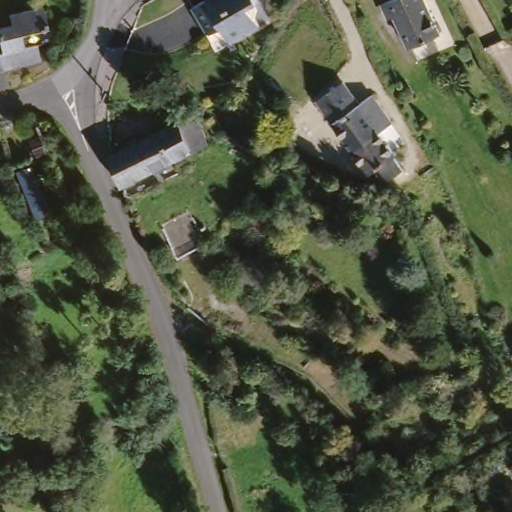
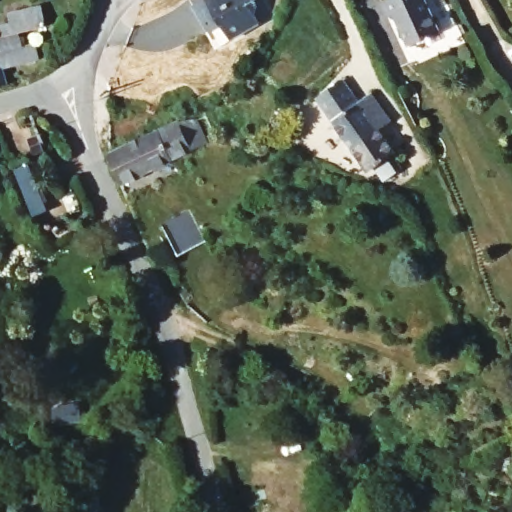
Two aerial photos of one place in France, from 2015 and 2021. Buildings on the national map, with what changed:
unchanged [(0,58),(0,42),(1,41),(0,35),(0,14),(10,11),(7,0),(10,0),(43,0),(46,15),(36,17),(42,32),(29,35),(33,50),(0,58)]
unchanged [(215,49),(190,5),(200,0),(259,0),(246,7),(256,25),(215,49)]
unchanged [(413,46),(398,15),(393,17),(385,2),(390,0),(428,0),(443,32),(413,46)]
unchanged [(0,86),(0,76),(2,85),(0,86)]
unchanged [(347,80),(358,103),(371,96),(385,122),(377,126),(392,154),(364,169),(336,116),(331,119),(318,95),(347,80)]
unchanged [(175,116),(195,119),(205,137),(120,178),(106,147),(175,116)]
unchanged [(33,165),(50,207),(35,215),(15,172),(33,165)]
unchanged [(181,250),(169,219),(197,209),(209,240),(181,250)]

